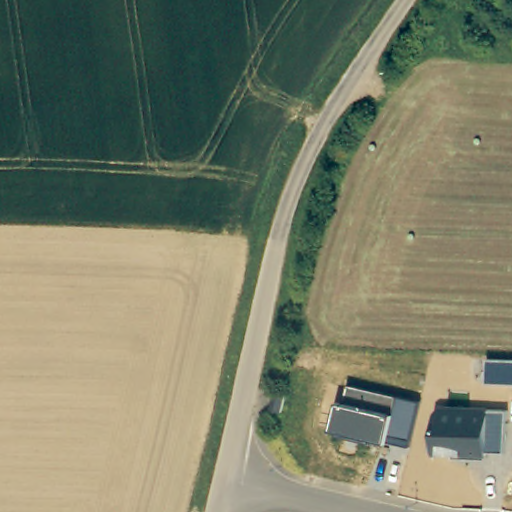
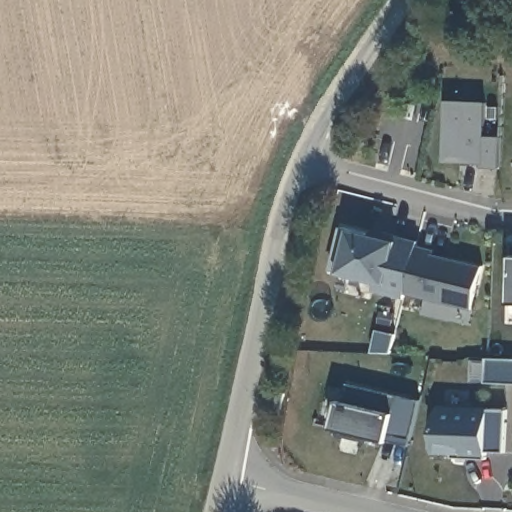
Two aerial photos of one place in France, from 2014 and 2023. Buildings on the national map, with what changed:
new [(489,102),(487,136),(503,136),(501,167),(483,167),(484,164),(446,161),(448,100),(489,102)]
new [(474,308),(408,291),(406,297),(376,290),(377,281),(342,272),(334,268),(343,226),(352,229),(371,234),(375,230),(420,241),(419,246),(435,249),(434,254),(484,266),(474,308)]
unchanged [(489,358),(512,359),(512,383),(489,382),(489,358)]
unchanged [(390,442),(335,428),(341,402),(349,404),(351,385),(422,400),(413,446),(390,442)]
unchanged [(278,411),(267,408),(272,390),(282,393),(278,411)]
unchanged [(486,451),(486,457),(434,454),(439,406),(490,410),(506,410),(504,452),(486,451)]

